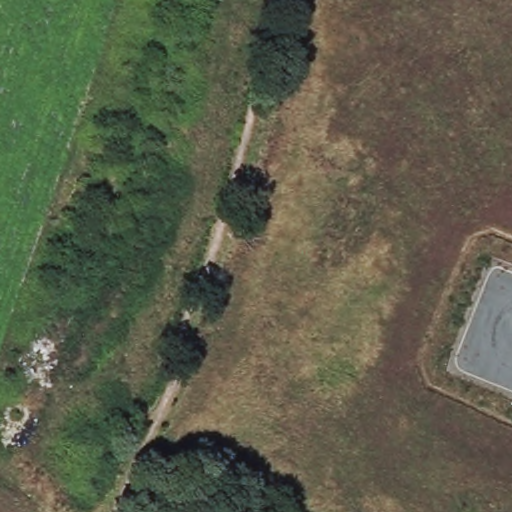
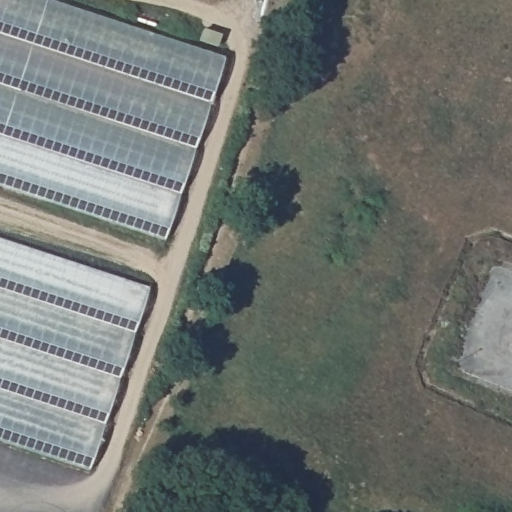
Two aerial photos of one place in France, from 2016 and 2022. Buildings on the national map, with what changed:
new [(0,186),(0,0),(57,0),(226,55),(166,240),(0,186)]
new [(151,286),(91,470),(0,440),(0,236),(151,286)]

